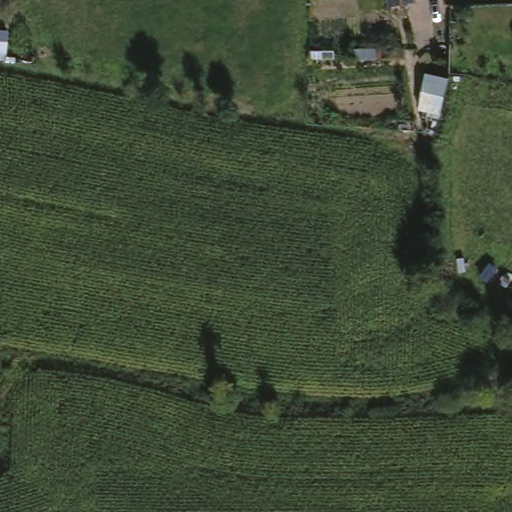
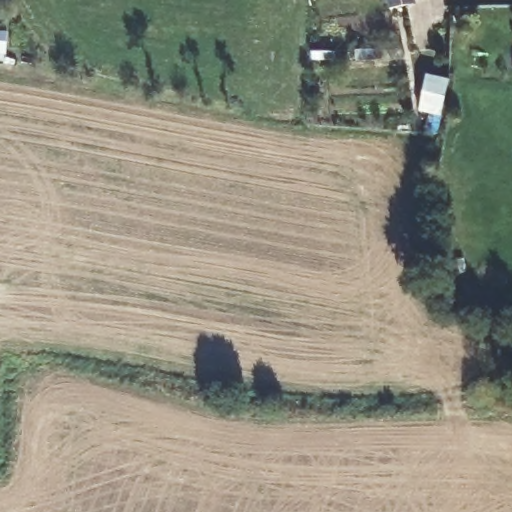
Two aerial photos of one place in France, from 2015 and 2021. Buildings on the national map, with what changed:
unchanged [(414,3),(388,8),(386,0),(413,0),(414,3)]
unchanged [(429,71),(457,79),(445,119),(420,112),(429,71)]

